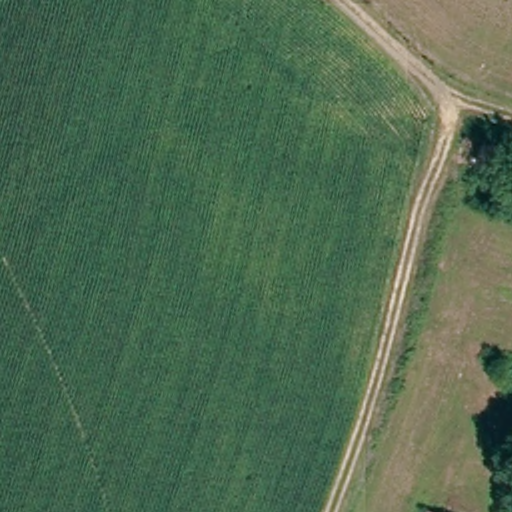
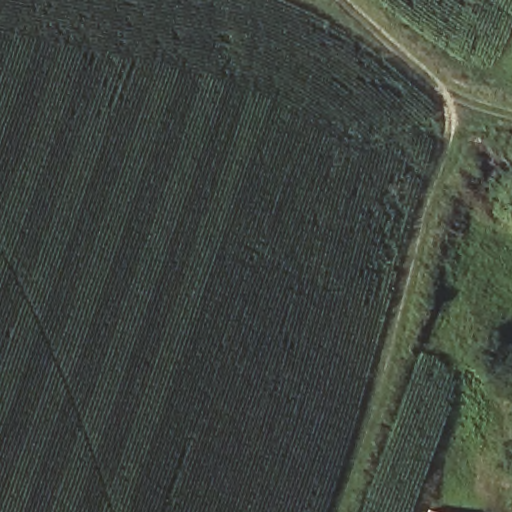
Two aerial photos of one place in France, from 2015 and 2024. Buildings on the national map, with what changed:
unchanged [(432,512),(424,512),(425,510),(432,512)]

